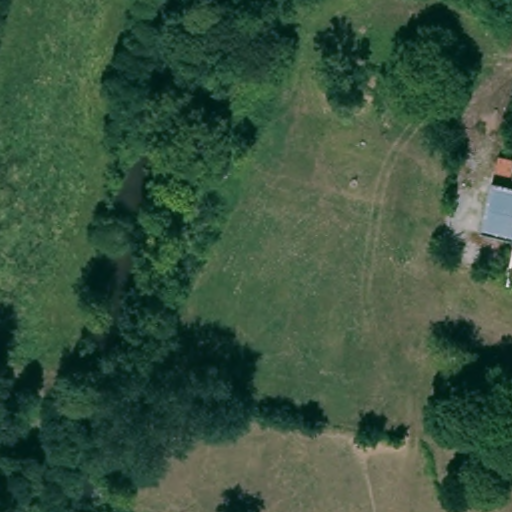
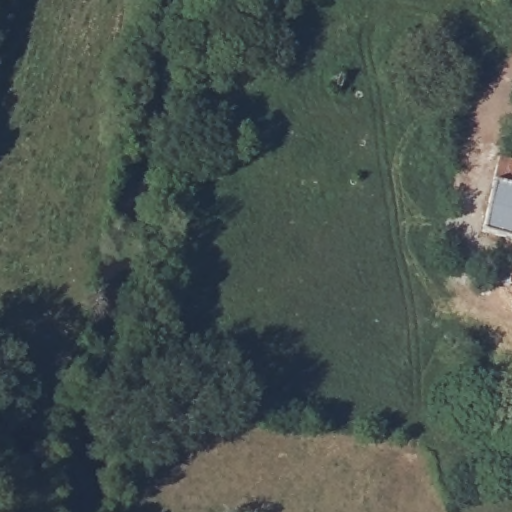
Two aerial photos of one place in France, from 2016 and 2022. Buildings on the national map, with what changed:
unchanged [(512,239),(484,234),(503,154),(512,155),(512,239)]

